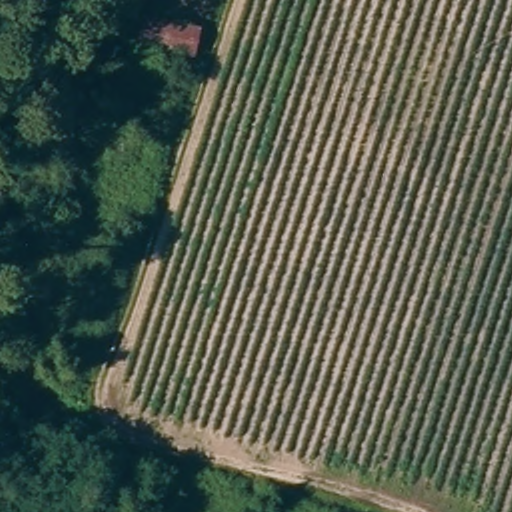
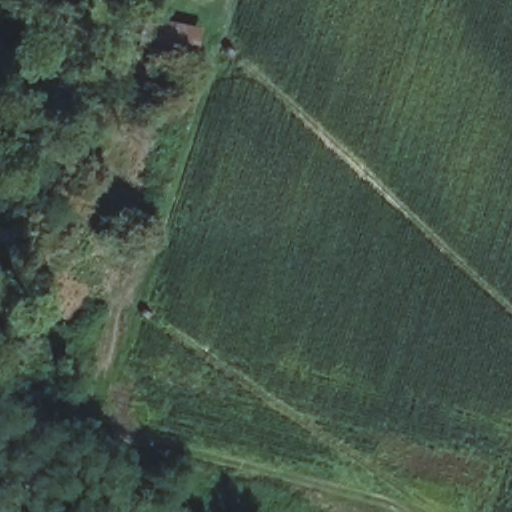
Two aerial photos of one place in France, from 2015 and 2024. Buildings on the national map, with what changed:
unchanged [(202,26),(195,57),(140,45),(145,13),(202,26)]

